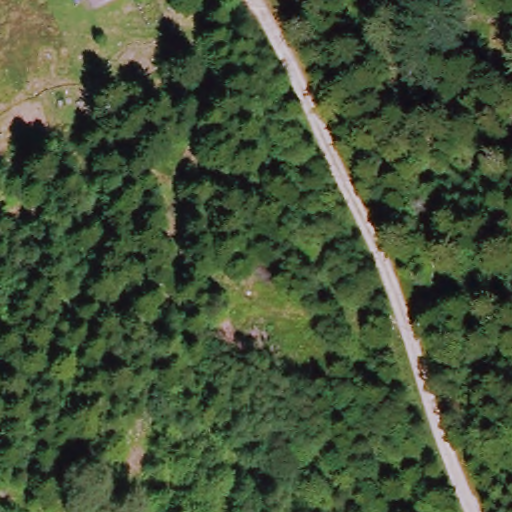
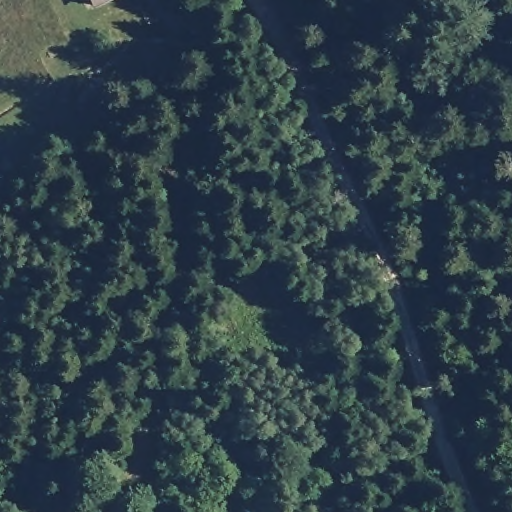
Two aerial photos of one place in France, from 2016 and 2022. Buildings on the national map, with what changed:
unchanged [(90,12),(84,0),(117,0),(90,12)]

